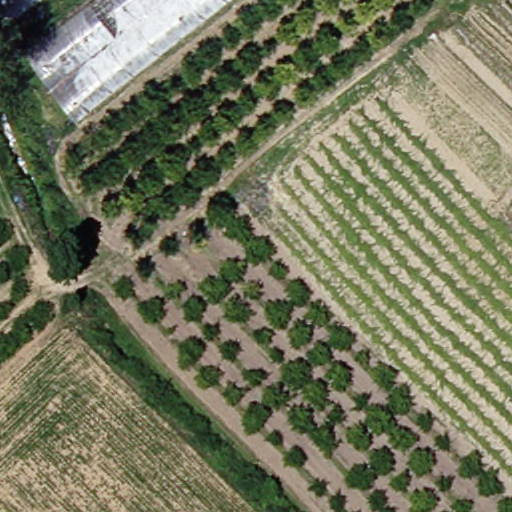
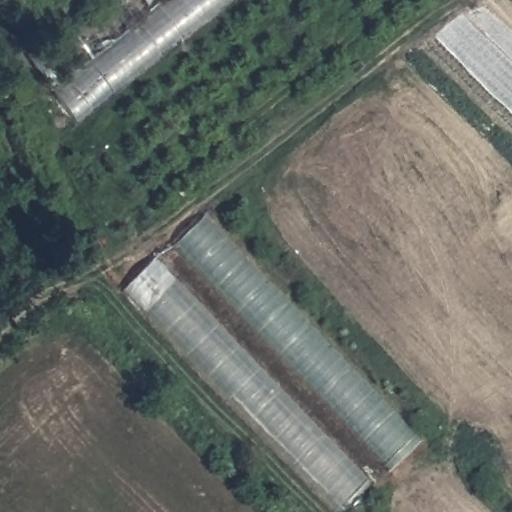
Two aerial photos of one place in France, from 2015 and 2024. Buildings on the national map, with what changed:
unchanged [(7,0),(40,0),(19,16),(7,0)]
unchanged [(31,58),(105,0),(230,0),(81,125),(31,58)]
new [(205,216),(420,442),(388,472),(173,245),(205,216)]
new [(371,481),(346,512),(341,512),(125,288),(152,260),(371,481)]

